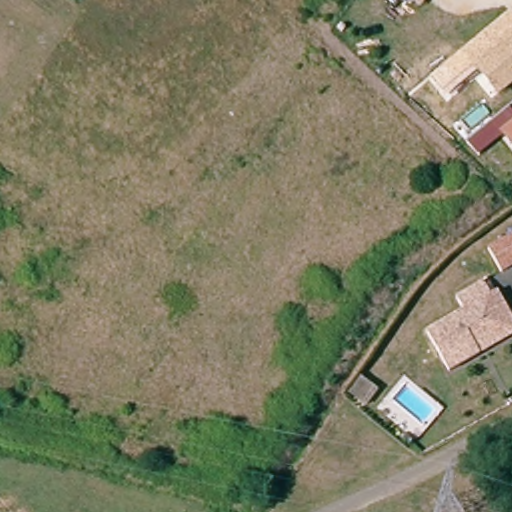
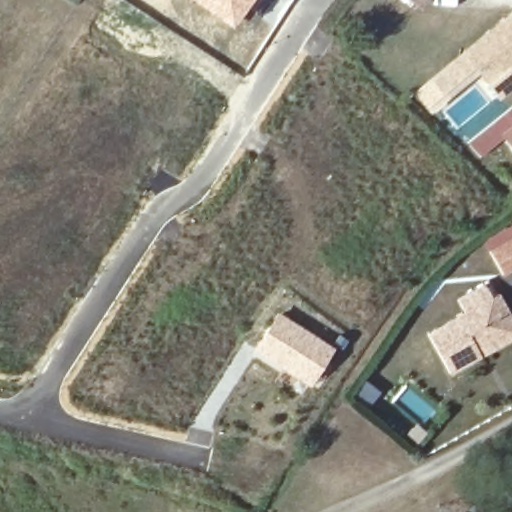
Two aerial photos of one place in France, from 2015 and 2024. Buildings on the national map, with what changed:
new [(194,0),(254,0),(235,27),(194,0)]
unchanged [(406,0),(428,0),(420,11),(406,0)]
unchanged [(512,21),(512,80),(497,60),(507,52),(492,32),(510,19),(512,21)]
unchanged [(507,52),(497,60),(512,80),(512,82),(498,94),(465,53),(492,32),(507,52)]
unchanged [(448,100),(430,79),(465,53),(481,72),(448,100)]
unchanged [(480,158),(468,146),(510,110),(512,112),(512,127),(502,135),(505,139),(480,158)]
unchanged [(502,135),(512,127),(512,148),(502,135)]
unchanged [(489,251),(512,238),(512,271),(503,276),(489,251)]
unchanged [(457,290),(484,275),(491,288),(497,285),(512,312),(512,329),(480,347),(449,365),(427,325),(465,305),(457,290)]
new [(279,310),(337,345),(311,386),(254,351),(279,310)]
demolished [(376,402),(365,393),(377,378),(389,387),(376,402)]
new [(348,396),(361,380),(379,393),(368,410),(348,396)]

